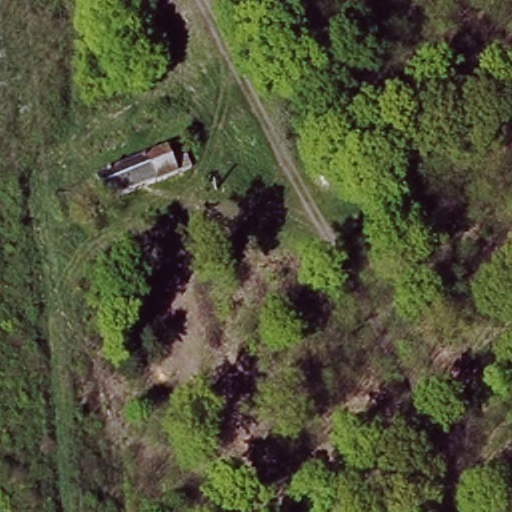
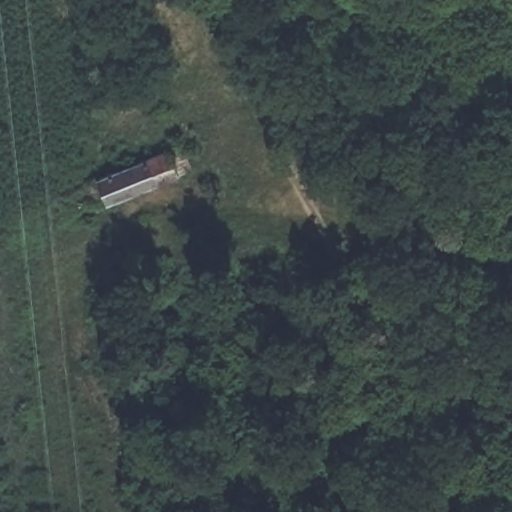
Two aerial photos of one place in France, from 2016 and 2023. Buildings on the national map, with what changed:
unchanged [(193,169),(106,204),(98,184),(88,188),(85,181),(97,179),(183,145),(193,169)]

